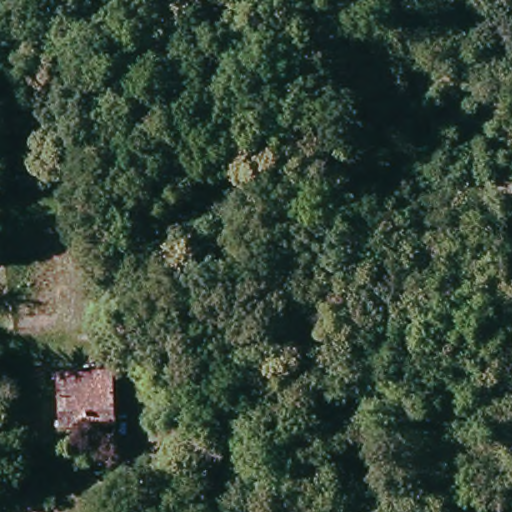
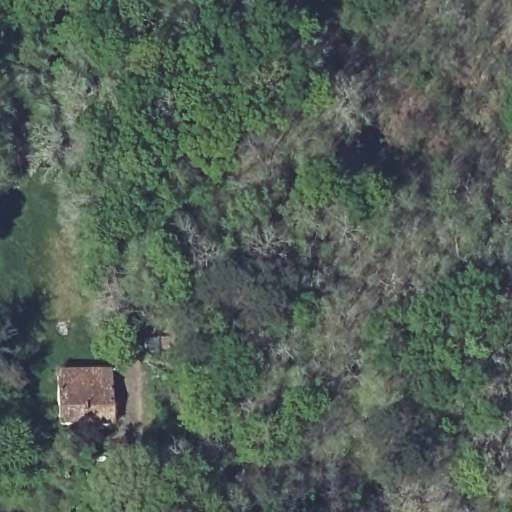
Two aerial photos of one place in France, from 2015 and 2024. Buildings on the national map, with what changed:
unchanged [(113,421),(60,430),(53,381),(106,373),(113,421)]

